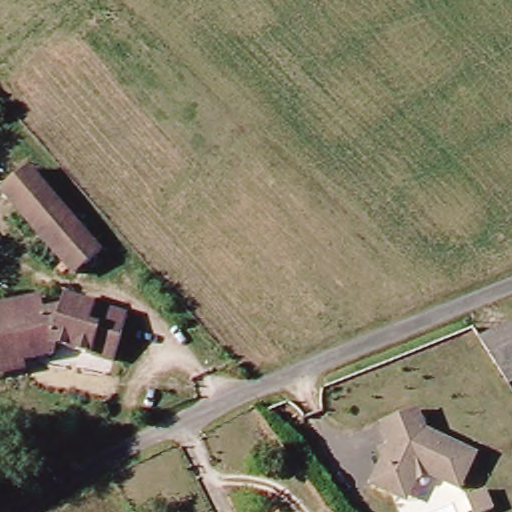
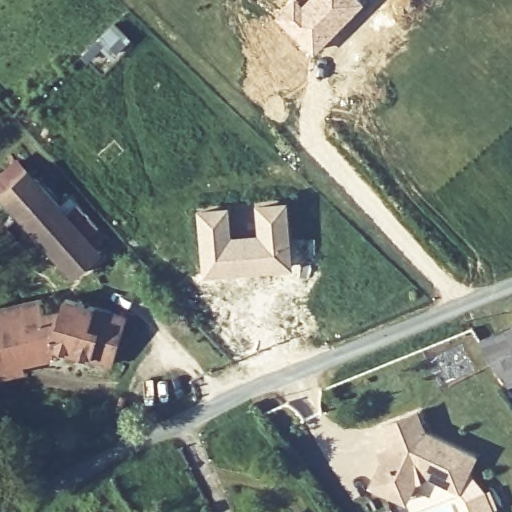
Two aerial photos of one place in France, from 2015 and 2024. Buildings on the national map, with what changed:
new [(290,0),(300,0),(303,2),(305,0),(363,0),(366,2),(315,54),(274,14),(290,0)]
new [(114,25),(128,38),(111,57),(101,47),(87,61),(82,57),(114,25)]
unchanged [(98,251),(72,274),(0,191),(27,169),(98,251)]
new [(230,207),(232,237),(265,236),(263,206),(288,205),(292,267),(266,268),(266,263),(233,265),(233,269),(208,271),(205,209),(230,207)]
unchanged [(39,297),(43,312),(61,310),(62,297),(125,316),(111,362),(55,345),(51,355),(28,358),(25,350),(18,351),(20,357),(22,368),(0,373),(0,305),(39,297)]
unchanged [(482,336),(512,324),(512,377),(509,378),(482,336)]
unchanged [(475,455),(459,490),(427,475),(417,479),(413,486),(390,493),(372,486),(382,461),(388,462),(392,453),(382,424),(416,412),(425,432),(475,455)]
unchanged [(486,512),(472,512),(465,497),(485,490),(494,509),(486,512)]

